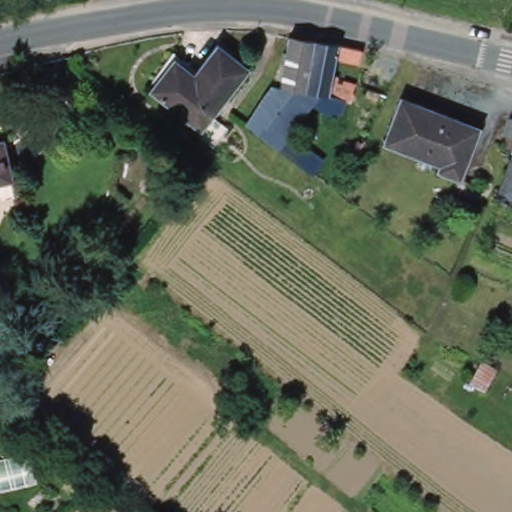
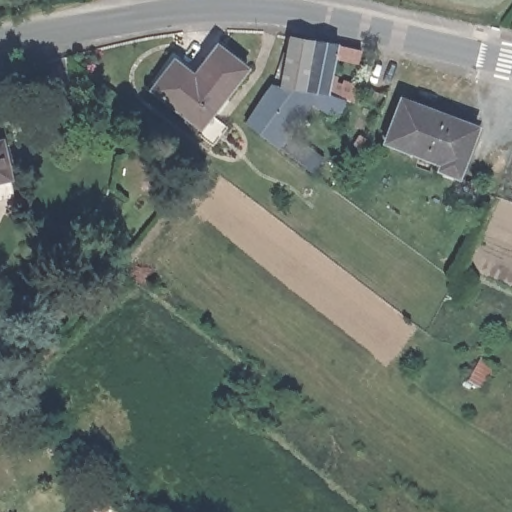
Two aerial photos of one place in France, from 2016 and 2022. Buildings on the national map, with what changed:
unchanged [(320,40),(310,89),(276,84),(290,52),(291,51),(293,36),(320,40)]
unchanged [(310,89),(320,40),(343,44),(335,82),(333,92),(333,93),(310,89)]
unchanged [(244,66),(196,125),(148,87),(173,56),(191,70),(214,43),(244,66)]
unchanged [(262,103),(268,93),(276,84),(310,89),(333,93),(330,100),(327,108),(315,101),(282,147),(249,123),(262,103)]
unchanged [(479,127),(459,178),(381,148),(401,97),(479,127)]
unchanged [(502,129),(509,112),(512,114),(512,134),(502,129)]
unchanged [(0,182),(0,142),(1,141),(9,180),(0,182)]
unchanged [(496,198),(512,155),(512,204),(496,198)]

